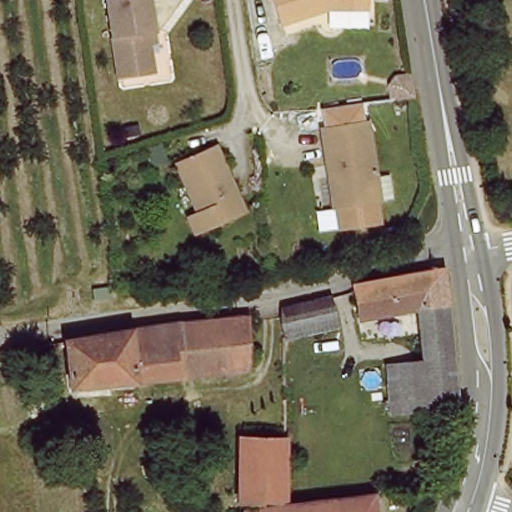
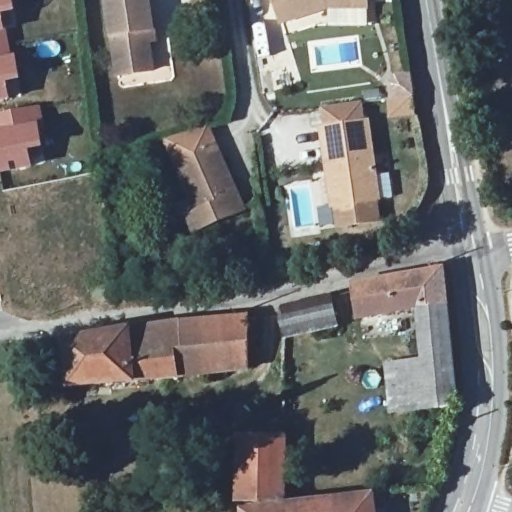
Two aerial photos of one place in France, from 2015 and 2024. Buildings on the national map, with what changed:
new [(16,12),(3,15),(12,55),(0,57),(0,0),(14,0),(16,12)]
unchanged [(152,42),(158,71),(123,79),(108,1),(114,0),(150,0),(156,31),(158,41),(152,42)]
unchanged [(285,34),(268,0),(367,0),(368,5),(356,6),(329,11),(285,34)]
new [(16,54),(22,81),(9,84),(11,99),(0,101),(0,57),(12,55),(16,54)]
new [(389,56),(404,54),(407,76),(384,80),(383,65),(389,56)]
new [(43,120),(40,121),(44,148),(30,151),(33,167),(0,173),(0,112),(39,104),(43,120)]
unchanged [(378,181),(378,205),(331,209),(330,175),(328,129),(338,128),(374,125),(378,181)]
unchanged [(202,213),(180,164),(219,145),(248,210),(209,228),(199,233),(192,218),(202,213)]
unchanged [(356,281),(443,269),(457,402),(451,403),(394,409),(389,363),(425,359),(419,310),(361,316),(356,287),(356,281)]
unchanged [(335,330),(289,337),(289,308),(293,308),(328,302),(335,330)]
unchanged [(256,363),(68,399),(63,375),(72,373),(67,346),(111,338),(188,324),(252,311),(256,363)]
unchanged [(279,490),(248,490),(246,452),(280,452),(279,490)]
unchanged [(277,512),(286,510),(351,500),(374,495),(376,512),(277,512)]

